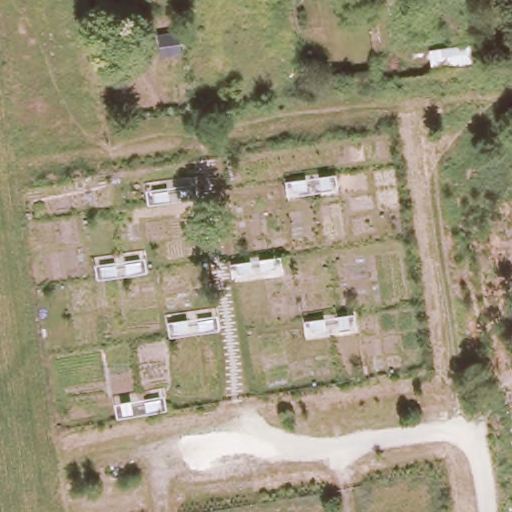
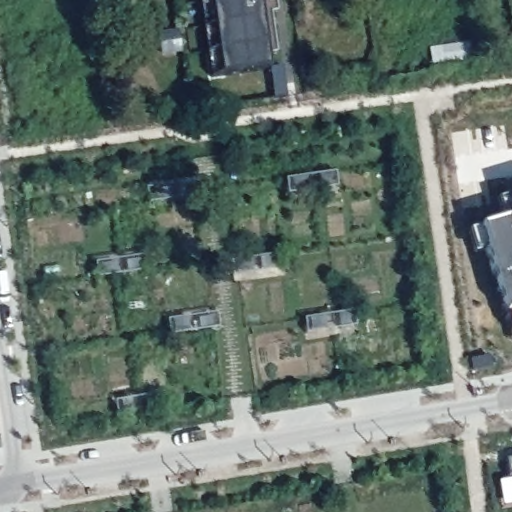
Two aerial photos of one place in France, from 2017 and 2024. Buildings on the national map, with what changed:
new [(262,0),(274,0),(277,12),(263,15),(272,66),(226,75),(212,0),(259,0),(262,0)]
unchanged [(469,62),(449,64),(446,41),(464,40),(469,62)]
new [(508,197),(512,196),(512,211),(508,197)]
new [(479,229),(512,219),(512,317),(506,319),(479,229)]
new [(510,332),(506,319),(512,317),(512,332),(510,332)]
new [(508,473),(507,460),(512,459),(512,473),(508,473)]

